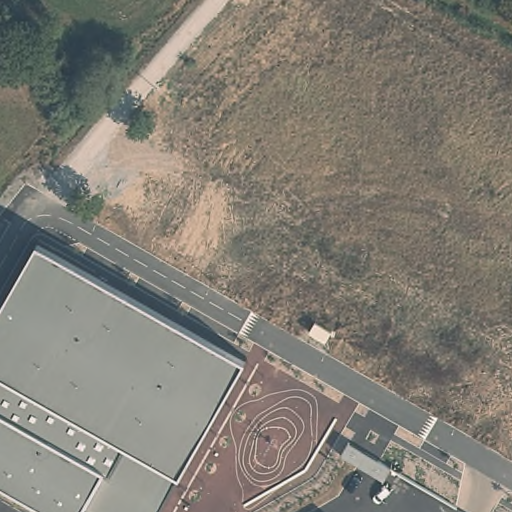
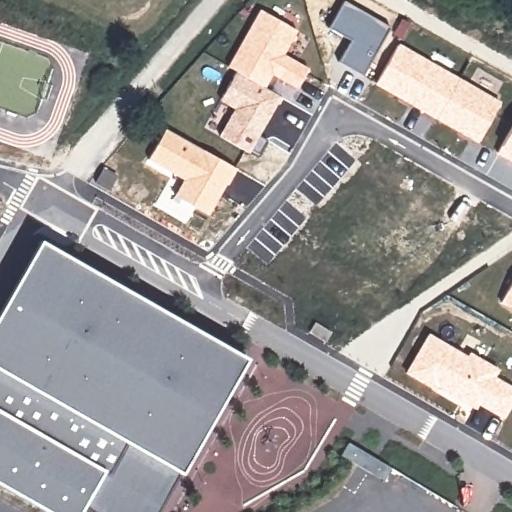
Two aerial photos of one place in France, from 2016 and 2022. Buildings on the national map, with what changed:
new [(228,66),(261,9),(298,31),(284,55),(308,69),(297,89),(273,74),(265,88),(235,71),(228,66)]
new [(398,43),(501,101),(479,142),(375,85),(398,43)]
new [(234,109),(219,100),(235,71),(265,88),(281,97),(259,135),(268,139),(260,155),(252,150),(249,153),(220,136),(234,109)]
new [(500,146),(512,125),(512,162),(497,154),(500,146)]
new [(165,129),(237,169),(209,215),(173,195),(183,180),(148,160),(165,129)]
unchanged [(158,512),(91,512),(82,507),(80,512),(47,512),(0,485),(0,305),(37,239),(246,358),(179,475),(158,512)]
new [(512,283),(512,309),(500,303),(512,283)]
new [(429,332),(468,355),(470,351),(500,369),(495,376),(512,386),(512,406),(504,419),(479,405),(477,410),(437,387),(435,390),(405,372),(429,332)]
new [(348,442),(390,468),(383,481),(340,455),(348,442)]

